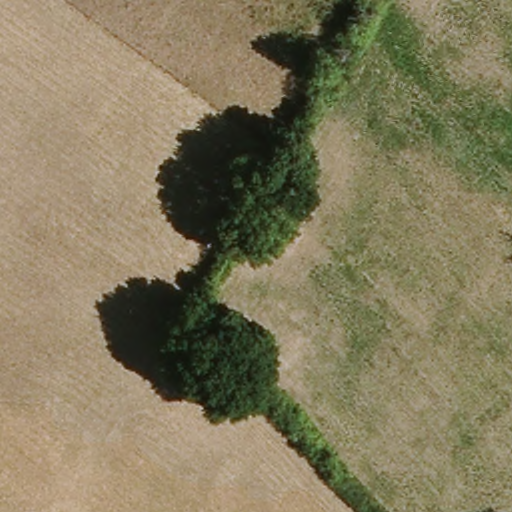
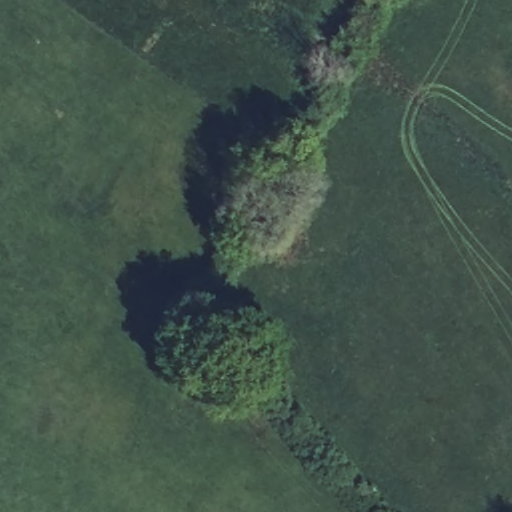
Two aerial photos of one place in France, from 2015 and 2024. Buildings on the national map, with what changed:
[]

